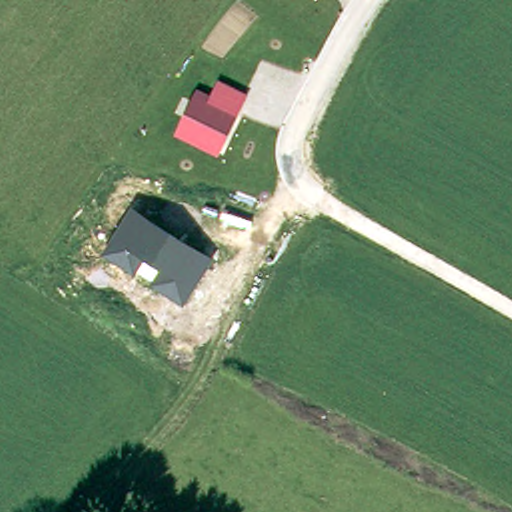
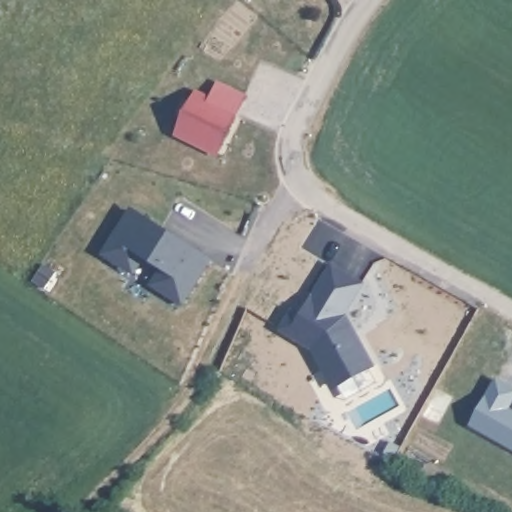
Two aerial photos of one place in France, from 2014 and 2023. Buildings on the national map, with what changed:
unchanged [(239,113),(221,148),(185,130),(203,95),(215,100),(224,83),(247,95),(239,113)]
unchanged [(212,256),(183,303),(151,283),(159,270),(144,260),(136,270),(102,251),(131,205),(212,256)]
new [(295,312),(304,317),(336,266),(365,284),(345,315),(349,317),(354,328),(352,330),(357,340),(360,340),(374,366),(337,386),(316,347),(285,328),(295,312)]
new [(495,381),(512,391),(512,401),(504,415),(512,420),(512,450),(489,438),(470,427),(476,417),(495,381)]

